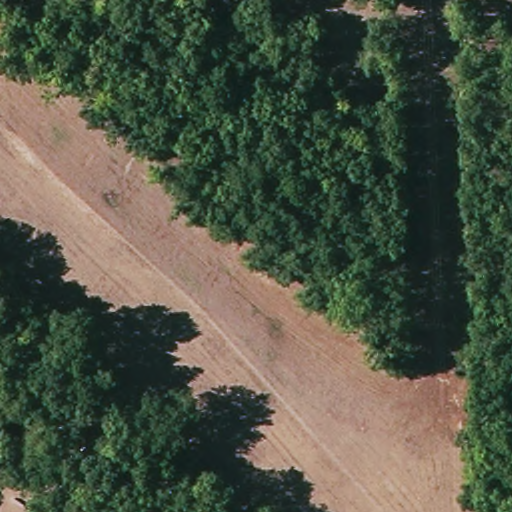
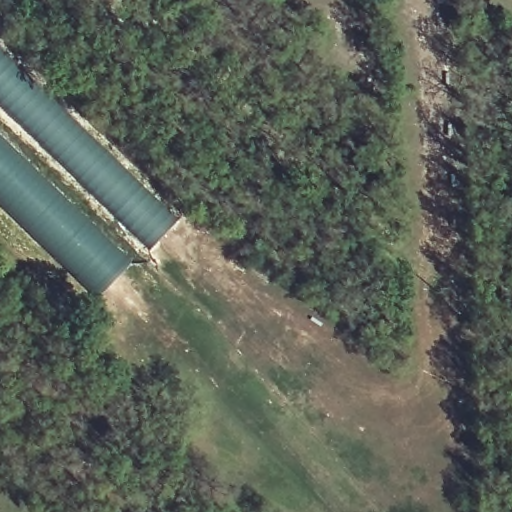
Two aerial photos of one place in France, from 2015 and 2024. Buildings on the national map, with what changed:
new [(178,221),(149,251),(0,105),(0,42),(178,221)]
new [(40,172),(133,258),(95,298),(0,207),(0,133),(40,172)]

